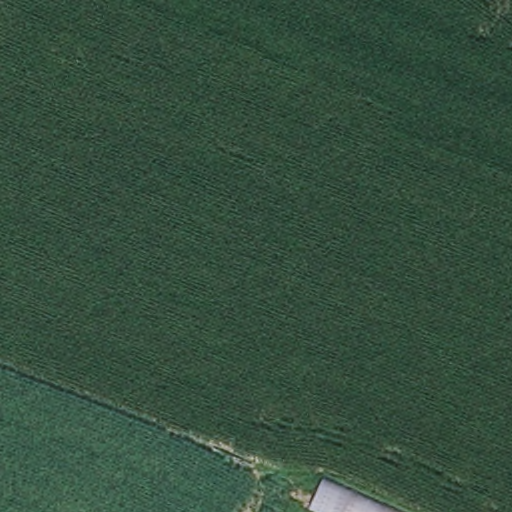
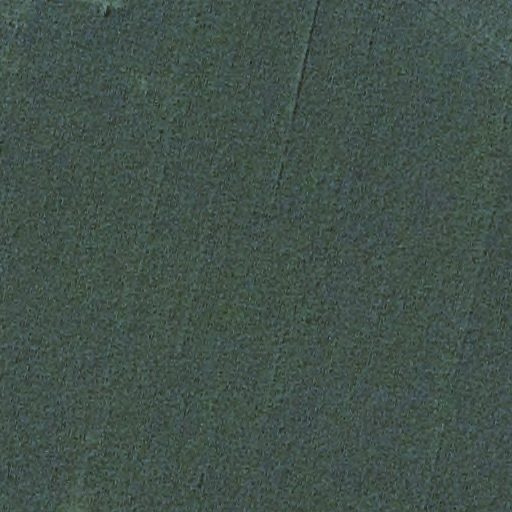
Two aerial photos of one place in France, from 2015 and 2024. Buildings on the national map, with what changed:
demolished [(402,512),(324,512),(313,508),(329,480),(402,512)]

